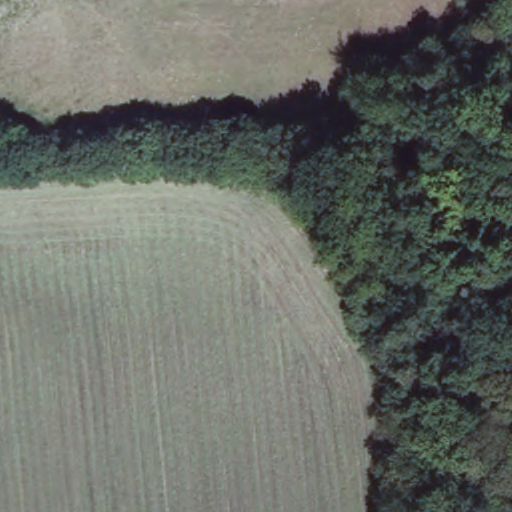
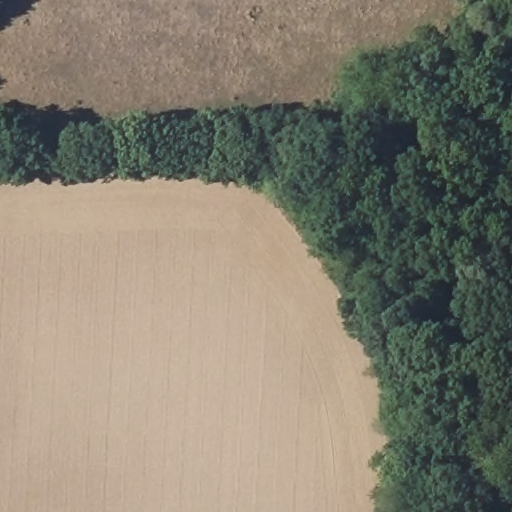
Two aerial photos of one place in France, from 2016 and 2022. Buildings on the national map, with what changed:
[]

